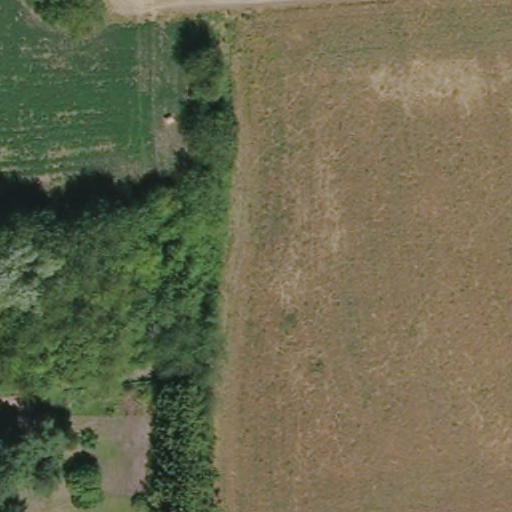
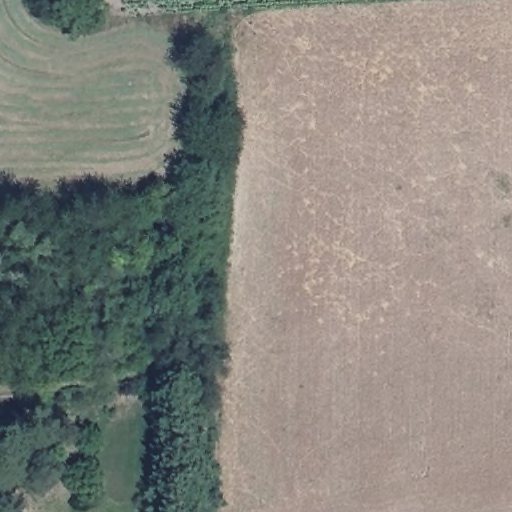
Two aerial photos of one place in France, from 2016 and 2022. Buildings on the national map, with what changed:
[]

